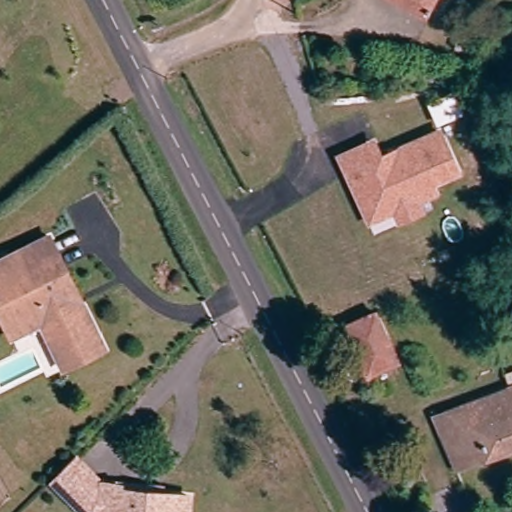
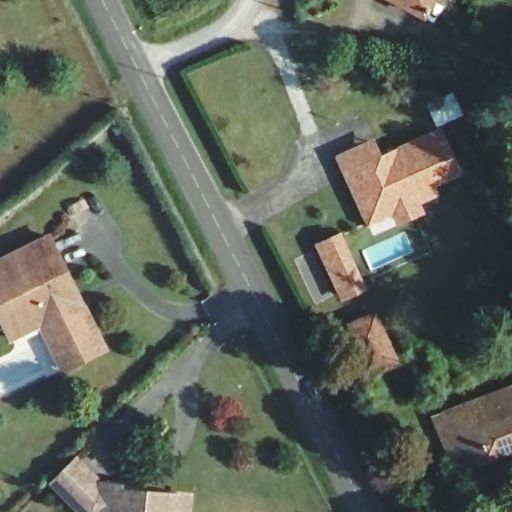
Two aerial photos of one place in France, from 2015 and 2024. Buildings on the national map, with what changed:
unchanged [(387,0),(439,0),(429,21),(387,0)]
unchanged [(400,220),(392,204),(372,213),(352,170),(349,172),(342,159),(341,155),(373,141),(374,141),(381,157),(439,130),(457,169),(430,181),(435,191),(416,200),(421,210),(400,220)]
unchanged [(0,315),(0,254),(48,231),(62,259),(81,295),(106,342),(64,363),(39,322),(22,330),(10,335),(0,315)]
new [(369,290),(343,302),(316,245),(342,232),(369,290)]
unchanged [(363,325),(384,366),(355,377),(336,334),(363,325)]
unchanged [(512,387),(512,451),(455,471),(429,414),(512,387)]
unchanged [(55,479),(79,453),(105,478),(127,479),(127,486),(195,491),(193,512),(84,512),(55,479)]

